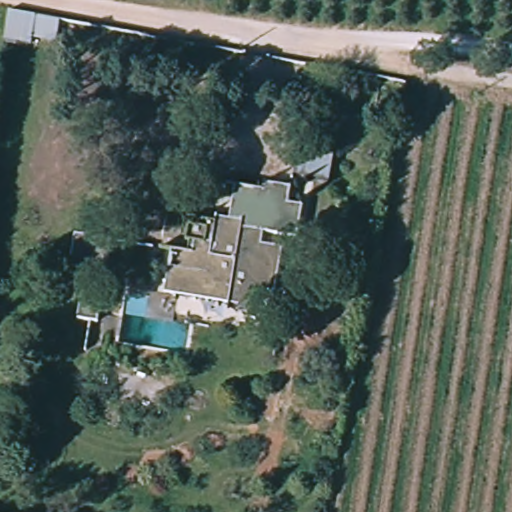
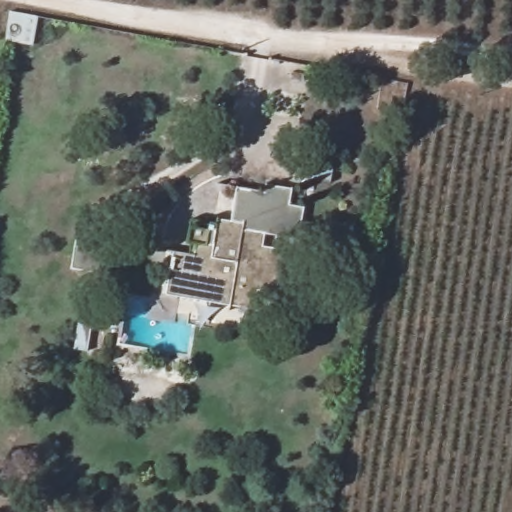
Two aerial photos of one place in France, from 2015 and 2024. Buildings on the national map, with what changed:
unchanged [(167,302),(174,257),(187,259),(192,233),(210,237),(208,253),(216,254),(221,229),(232,230),(238,195),(266,201),(259,238),(266,239),(262,254),(283,258),(277,300),(260,298),(256,317),(167,302)]

